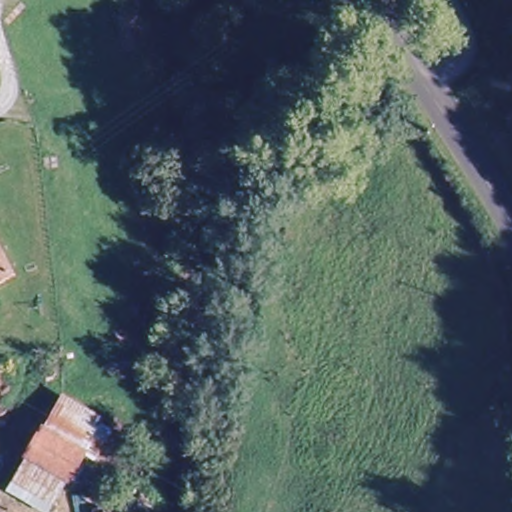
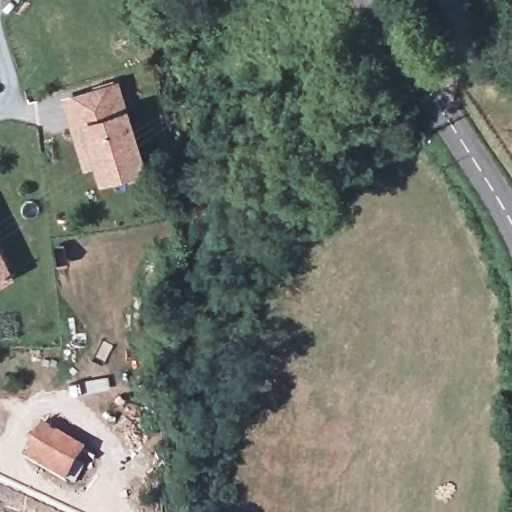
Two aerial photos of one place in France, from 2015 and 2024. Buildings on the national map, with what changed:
new [(60,96),(119,80),(127,106),(148,168),(99,184),(94,166),(83,170),(60,96)]
unchanged [(0,273),(0,255),(7,269),(0,273)]
unchanged [(97,457),(89,452),(51,512),(47,512),(28,506),(30,498),(7,483),(61,393),(114,425),(97,457)]

